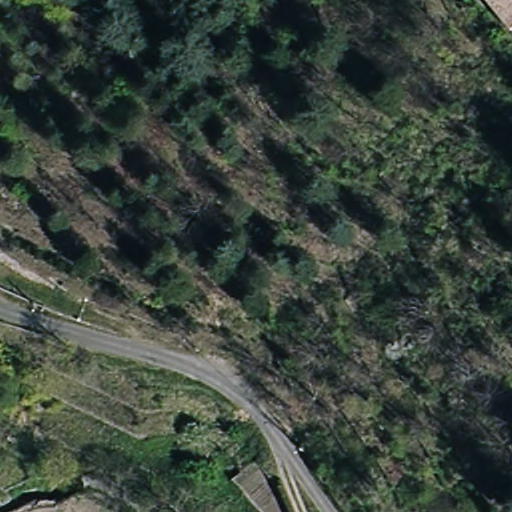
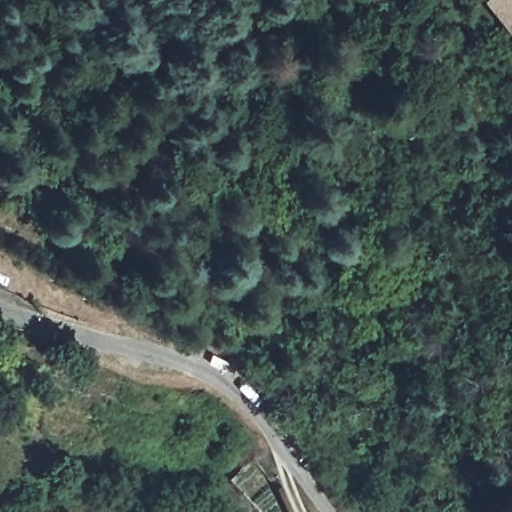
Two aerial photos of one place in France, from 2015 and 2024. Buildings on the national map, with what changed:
unchanged [(509,32),(485,0),(512,0),(512,30),(509,32)]

